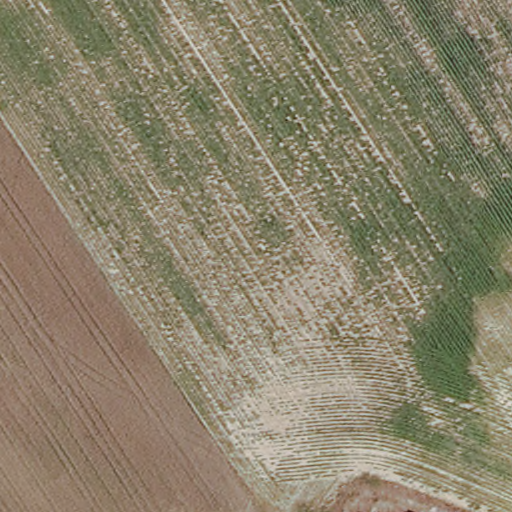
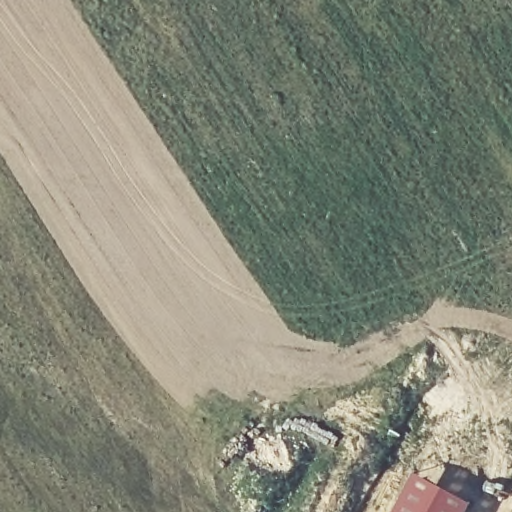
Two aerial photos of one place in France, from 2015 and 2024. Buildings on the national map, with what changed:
new [(412,473),(471,503),(466,512),(391,512),(412,473)]

